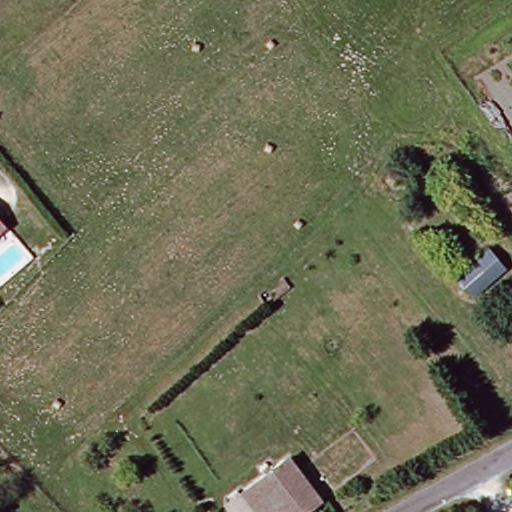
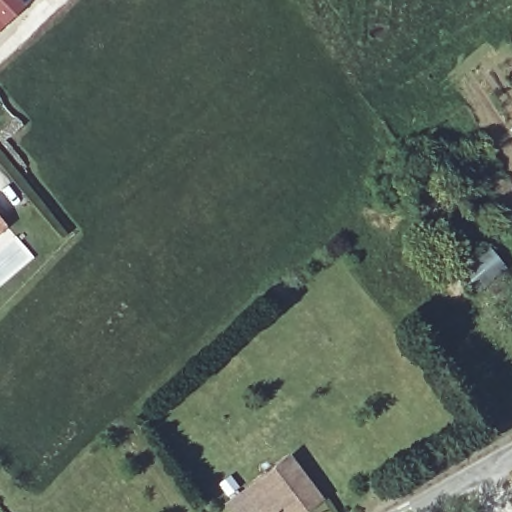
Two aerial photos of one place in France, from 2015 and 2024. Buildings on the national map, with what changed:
new [(0,29),(0,0),(22,0),(26,4),(0,29)]
unchanged [(6,222),(0,228),(0,214),(6,222)]
unchanged [(308,512),(254,512),(243,497),(287,462),(319,502),(308,512)]

